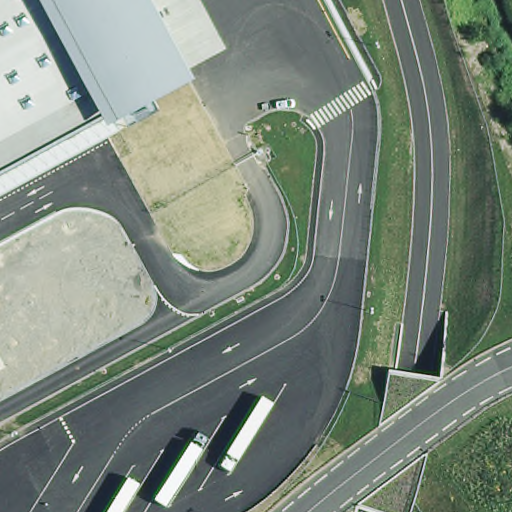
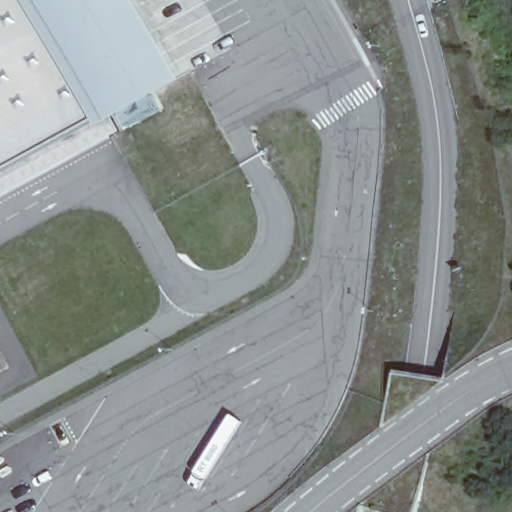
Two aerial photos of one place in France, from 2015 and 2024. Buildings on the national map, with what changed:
unchanged [(152,101),(157,110),(128,126),(123,115),(104,125),(99,117),(0,172),(0,0),(147,0),(190,80),(152,101)]

